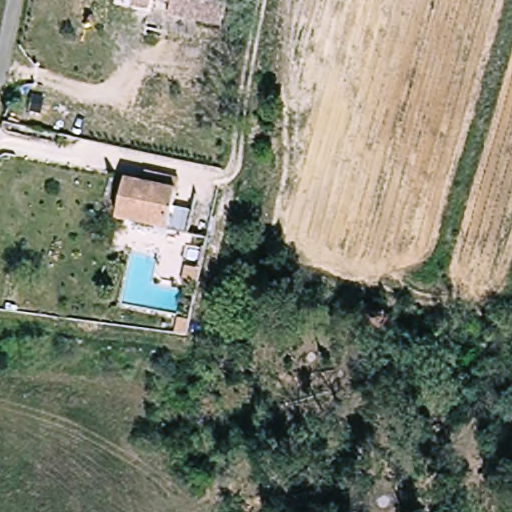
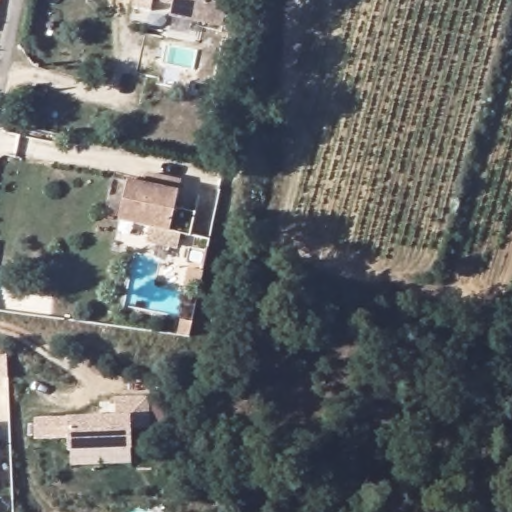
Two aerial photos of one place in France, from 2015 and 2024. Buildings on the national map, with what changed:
unchanged [(151,11),(131,7),(133,0),(153,0),(151,11)]
unchanged [(174,2),(163,0),(174,0),(174,2)]
unchanged [(222,28),(170,20),(174,0),(227,0),(222,28)]
unchanged [(143,189),(146,177),(179,186),(170,214),(185,217),(179,240),(114,224),(123,185),(143,189)]
unchanged [(174,300),(178,281),(197,284),(192,305),(174,300)]
new [(67,417),(116,415),(116,397),(150,397),(151,428),(132,432),(133,450),(104,450),(104,465),(71,466),(69,451),(69,440),(35,440),(34,419),(67,417)]

